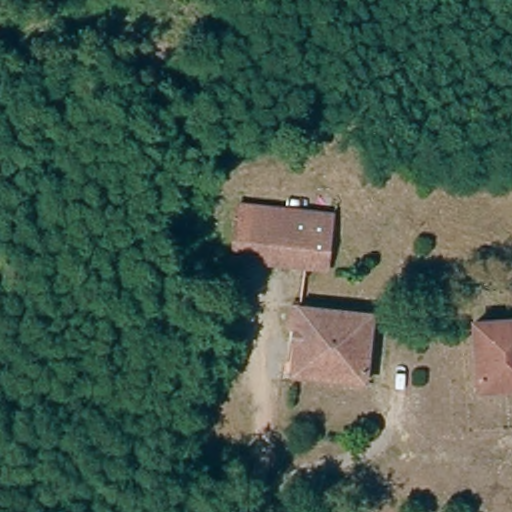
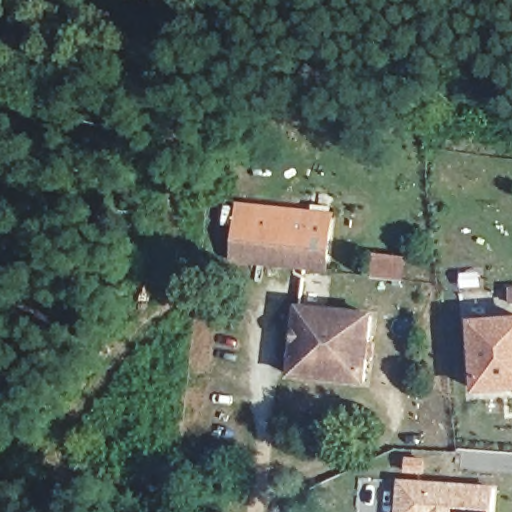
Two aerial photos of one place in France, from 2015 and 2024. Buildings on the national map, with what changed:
unchanged [(306,213),(303,253),(233,248),(238,208),(306,213)]
unchanged [(306,213),(338,215),(338,253),(318,253),(315,302),(373,305),(371,374),(293,369),(303,253),(306,213)]
unchanged [(512,375),(480,375),(482,308),(512,309),(512,375)]
new [(401,484),(422,485),(493,491),(491,512),(398,512),(401,484)]

